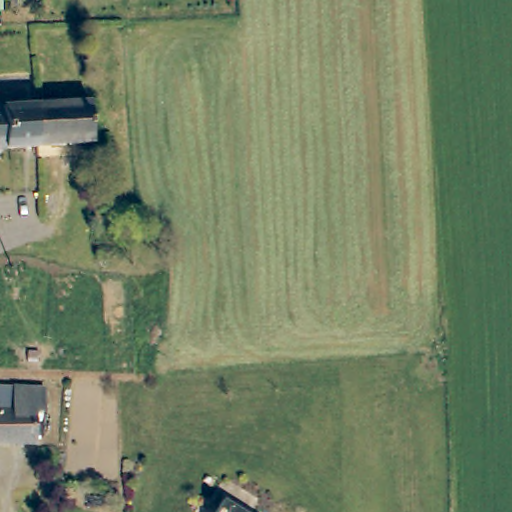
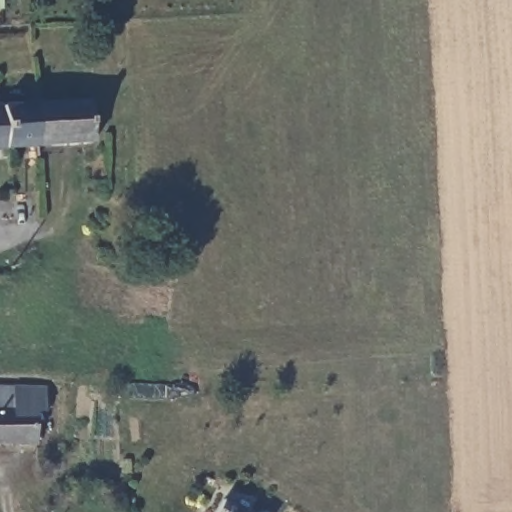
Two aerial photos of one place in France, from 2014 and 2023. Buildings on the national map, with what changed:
unchanged [(32,107),(88,103),(91,146),(35,150),(32,107)]
unchanged [(0,109),(32,107),(35,150),(2,152),(0,131),(0,109)]
unchanged [(0,152),(0,131),(2,152),(0,152)]
unchanged [(35,444),(0,445),(0,390),(15,389),(41,388),(40,415),(35,416),(35,444)]
unchanged [(220,506),(231,512),(216,512),(220,506)]

